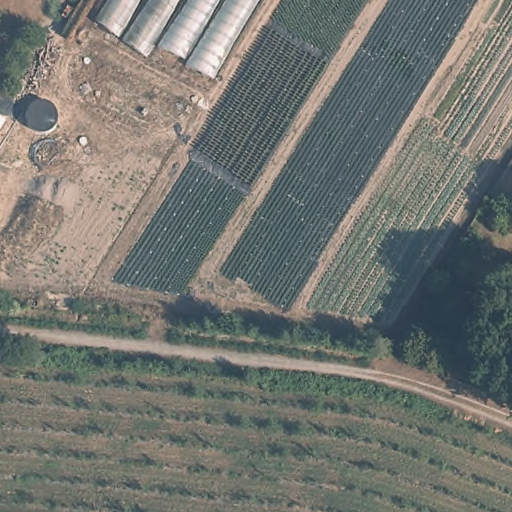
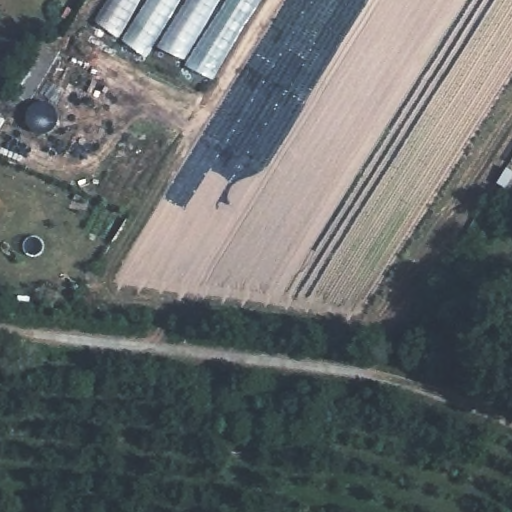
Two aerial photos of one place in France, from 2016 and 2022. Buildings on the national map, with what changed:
unchanged [(155,44),(145,58),(95,20),(107,0),(264,0),(215,80),(155,44)]

